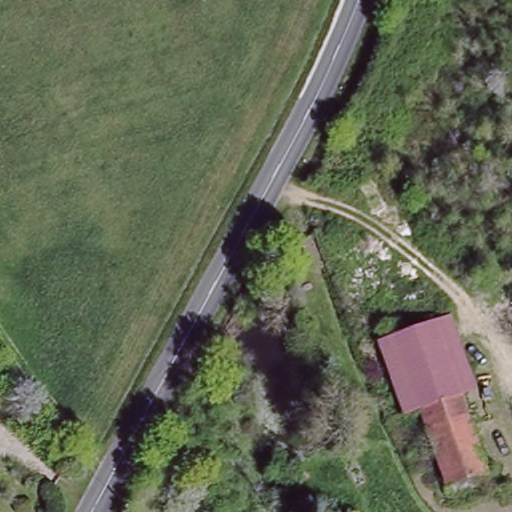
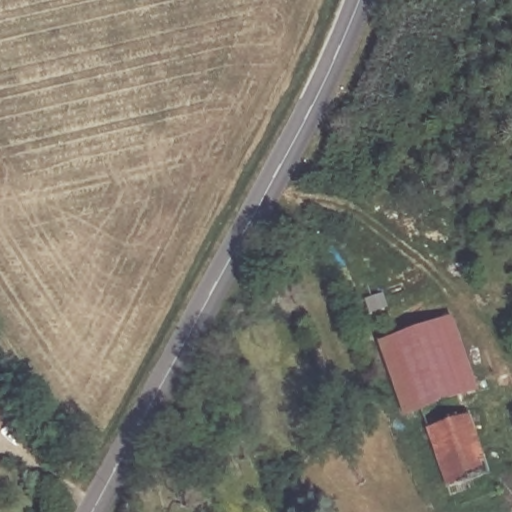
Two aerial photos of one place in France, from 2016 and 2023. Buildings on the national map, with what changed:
unchanged [(420,412),(402,417),(377,341),(458,323),(477,390),(465,396),(490,476),(445,487),(420,412)]

